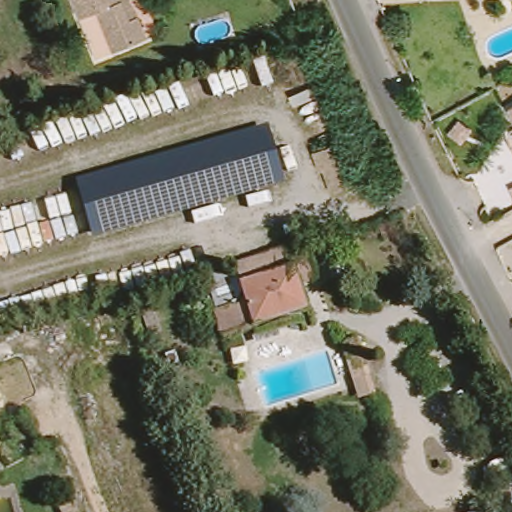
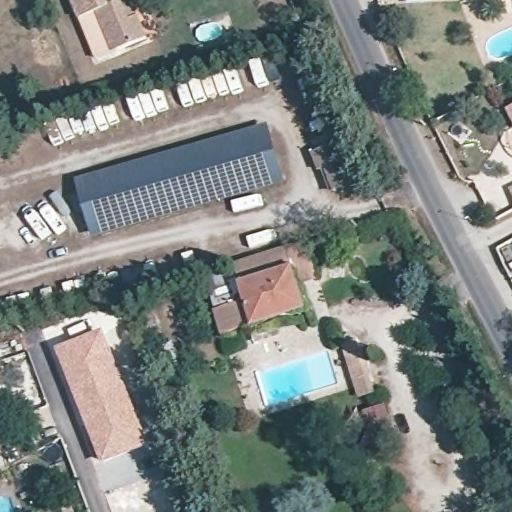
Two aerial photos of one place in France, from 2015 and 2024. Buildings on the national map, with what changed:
unchanged [(94,63),(69,0),(127,0),(136,21),(144,43),(94,63)]
unchanged [(328,43),(321,46),(316,36),(324,32),(328,43)]
unchanged [(76,180),(269,126),(287,181),(92,238),(76,180)]
unchanged [(329,174),(325,175),(319,157),(347,146),(364,189),(338,198),(329,174)]
unchanged [(253,347),(248,330),(223,338),(210,296),(204,278),(305,246),(316,280),(298,286),(306,312),(272,322),(278,339),(253,347)]
new [(104,329),(151,446),(103,465),(55,348),(104,329)]
unchanged [(356,380),(348,353),(348,352),(345,344),(343,335),(359,330),(364,347),(361,349),(369,375),(372,374),(378,392),(361,397),(354,380),(356,380)]
unchanged [(5,412),(0,414),(0,404),(2,403),(5,412)]
unchanged [(83,512),(85,511),(85,512),(83,512)]

